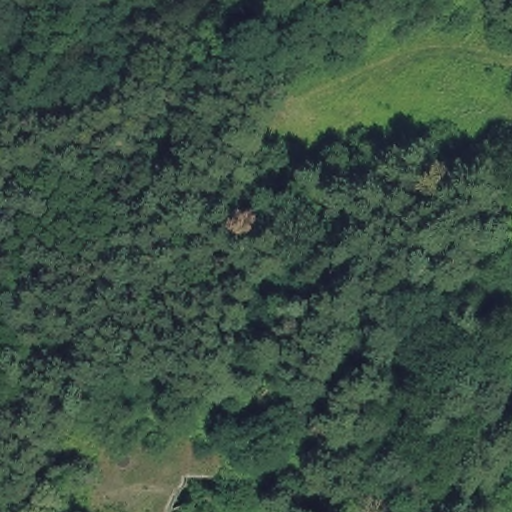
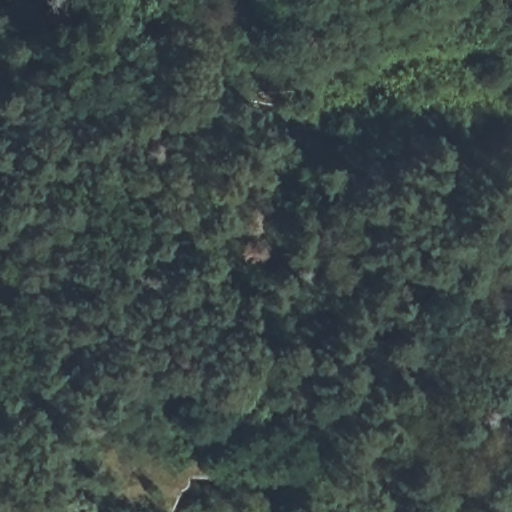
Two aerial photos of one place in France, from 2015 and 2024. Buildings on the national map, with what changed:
unchanged [(181,471),(164,512),(55,512),(174,412),(250,428),(238,477),(181,471)]

